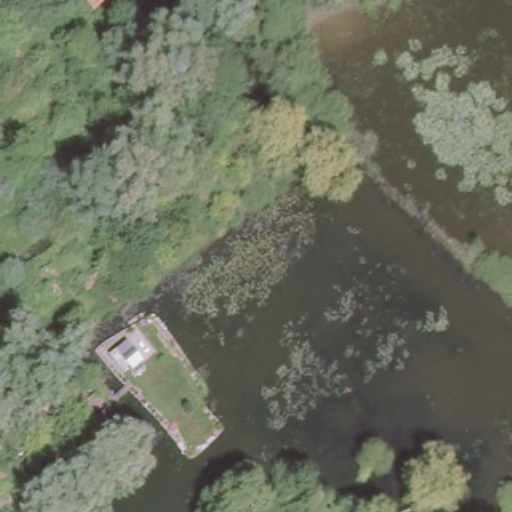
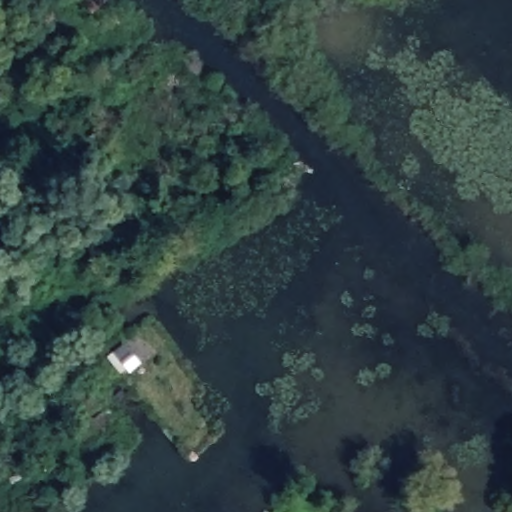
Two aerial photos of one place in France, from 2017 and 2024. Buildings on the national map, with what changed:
unchanged [(80,140),(66,117),(83,105),(99,130),(80,140)]
unchanged [(92,448),(82,432),(108,413),(120,428),(92,448)]

